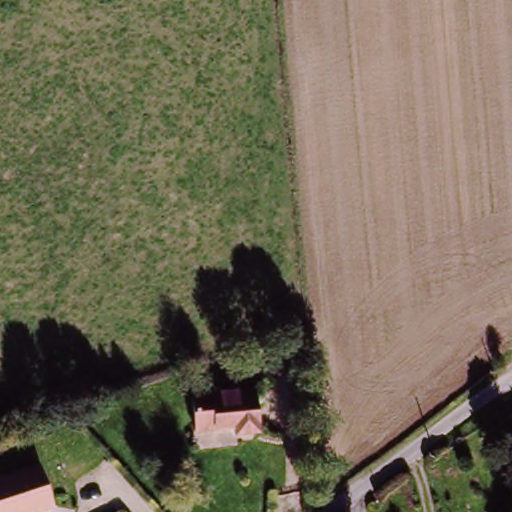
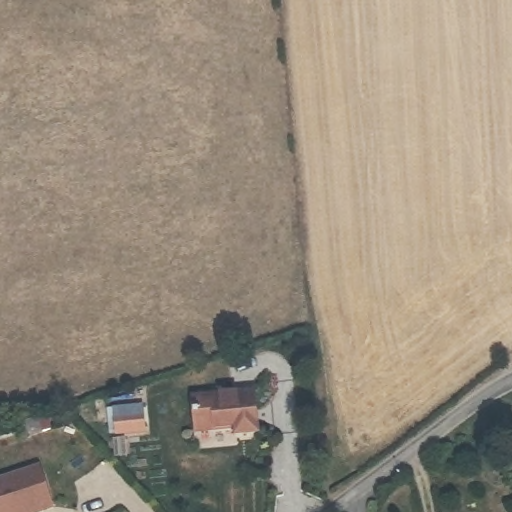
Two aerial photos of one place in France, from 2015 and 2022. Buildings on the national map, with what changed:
unchanged [(242,437),(241,430),(202,435),(197,400),(237,396),(259,393),(260,398),(264,435),(242,437)]
unchanged [(46,475),(58,512),(0,512),(0,490),(46,475)]

